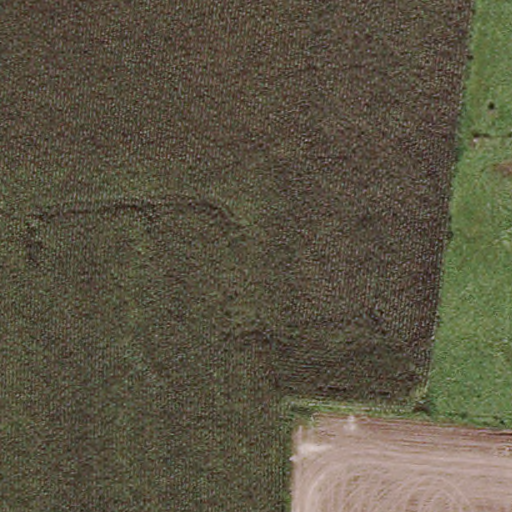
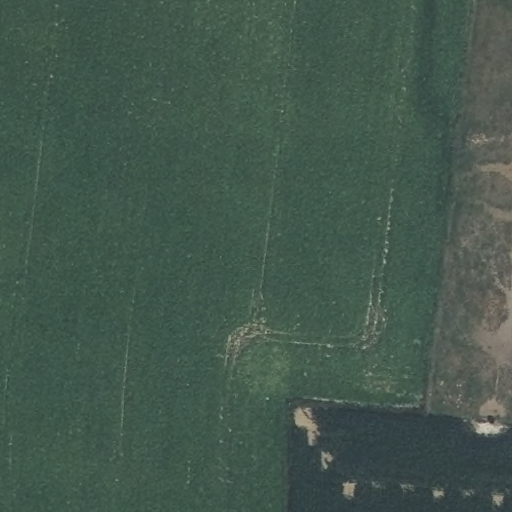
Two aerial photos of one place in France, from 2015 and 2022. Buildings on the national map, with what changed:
[]

